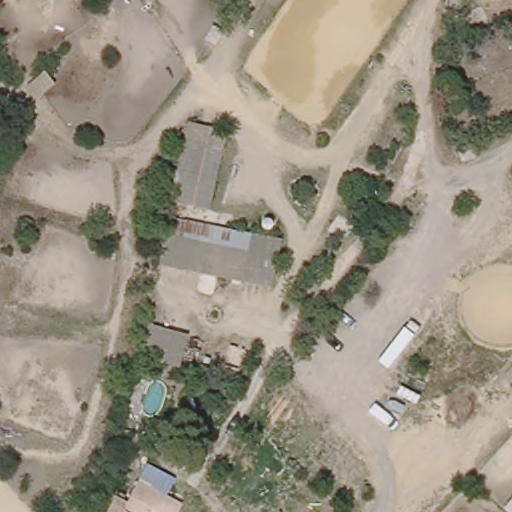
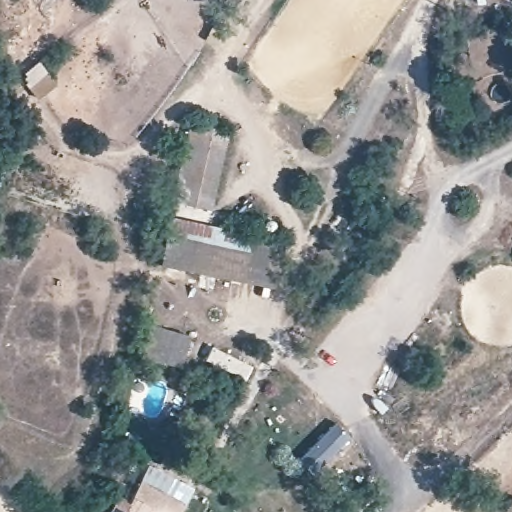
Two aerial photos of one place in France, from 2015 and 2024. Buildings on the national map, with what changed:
unchanged [(188,124),(227,132),(215,215),(173,201),(188,124)]
unchanged [(172,217),(284,238),(275,287),(163,263),(172,217)]
unchanged [(166,366),(142,358),(152,324),(177,331),(166,366)]
unchanged [(138,457),(126,456),(130,433),(142,435),(138,457)]
unchanged [(180,512),(115,512),(111,510),(123,486),(134,492),(145,471),(189,493),(180,512)]

